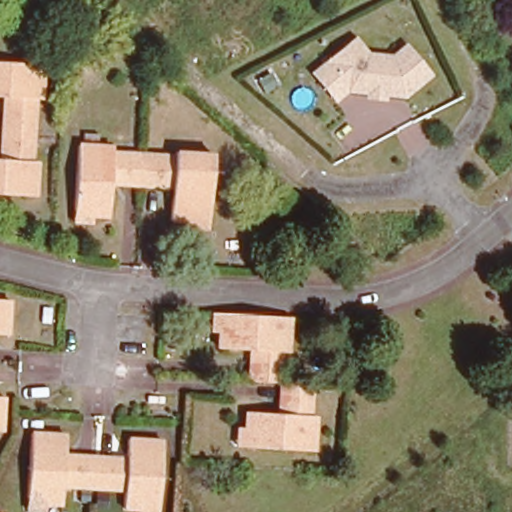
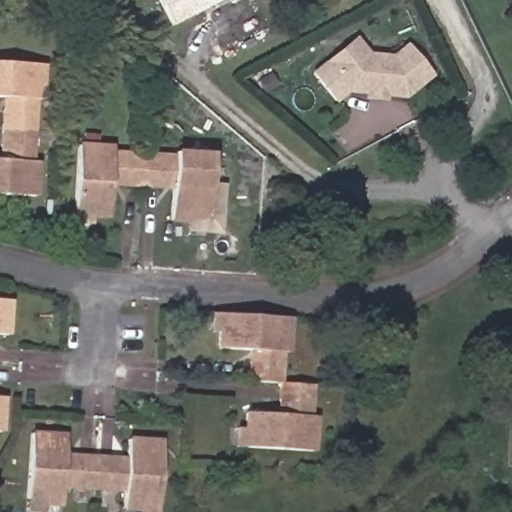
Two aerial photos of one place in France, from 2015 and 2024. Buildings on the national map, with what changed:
new [(159,0),(226,0),(173,27),(159,0)]
unchanged [(405,100),(390,97),(390,102),(363,100),(363,92),(350,91),(336,104),(310,71),(355,35),(370,54),(390,55),(406,40),(436,76),(405,100)]
unchanged [(16,110),(16,97),(0,96),(0,61),(47,64),(46,99),(34,99),(34,111),(40,112),(39,130),(6,127),(6,107),(16,110)]
unchanged [(11,158),(11,147),(5,147),(6,127),(39,130),(37,149),(30,149),(30,162),(42,162),(41,191),(0,190),(0,158),(11,158)]
unchanged [(76,219),(76,206),(80,143),(114,144),(115,156),(130,158),(130,150),(146,151),(144,183),(128,182),(127,174),(113,172),(110,215),(97,214),(96,221),(76,219)]
unchanged [(188,225),(189,217),(170,216),(171,176),(156,175),(155,184),(144,183),(146,151),(158,151),(158,161),(175,161),(174,147),(214,150),(212,215),(211,225),(188,225)]
unchanged [(14,301),(13,333),(0,333),(0,300),(14,301)]
unchanged [(251,360),(250,348),(212,346),(214,328),(204,328),(205,307),(221,309),(282,315),(278,351),(271,351),(270,363),(277,365),(275,385),(242,382),(243,360),(251,360)]
unchanged [(229,425),(239,425),(240,412),(279,415),(280,403),(274,402),(275,385),(303,386),(302,403),(293,403),(293,417),(307,418),(305,450),(243,445),(229,445),(229,425)]
unchanged [(5,398),(5,427),(0,427),(0,398),(5,398)]
unchanged [(36,510),(36,496),(40,435),(71,436),(70,463),(80,465),(81,455),(101,456),(99,490),(81,490),(81,480),(69,480),(67,502),(52,502),(52,510),(36,510)]
unchanged [(141,508),(127,508),(129,487),(117,485),(117,491),(99,490),(101,456),(132,458),(132,442),(165,444),(162,510),(162,512),(141,512),(141,508)]

